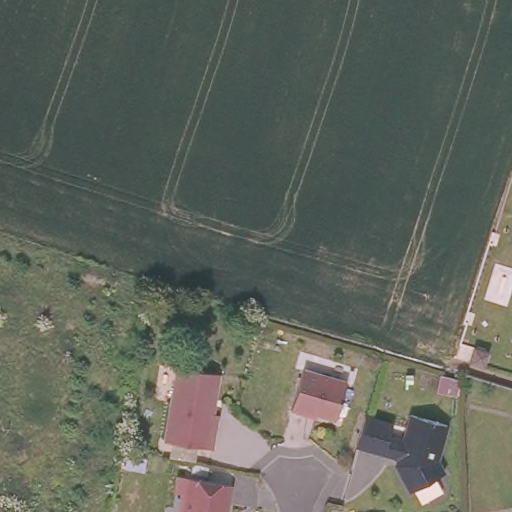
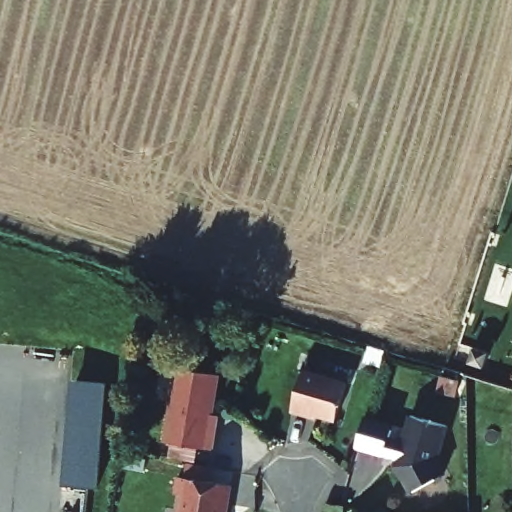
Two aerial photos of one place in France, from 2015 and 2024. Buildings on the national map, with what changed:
unchanged [(488,353),(484,367),(469,363),(474,348),(488,353)]
unchanged [(164,442),(178,368),(219,376),(212,416),(217,417),(211,451),(164,442)]
unchanged [(309,409),(308,415),(293,410),(304,370),(348,383),(338,418),(309,409)]
new [(107,383),(98,486),(64,484),(73,381),(107,383)]
unchanged [(407,415),(443,425),(433,461),(438,475),(404,489),(393,463),(394,457),(380,453),(353,445),(361,416),(389,424),(385,437),(399,441),(407,415)]
unchanged [(178,512),(181,496),(175,495),(178,477),(230,487),(225,512),(178,512)]

